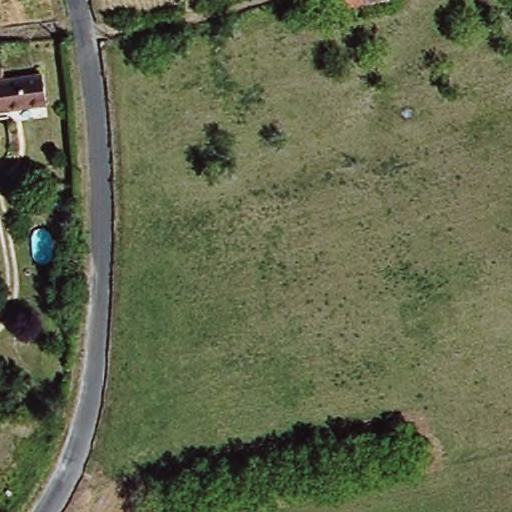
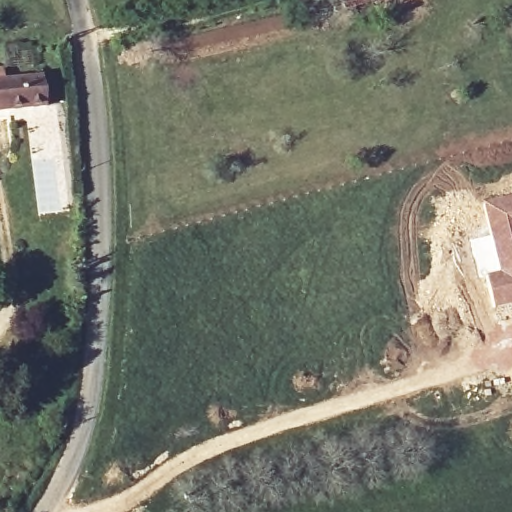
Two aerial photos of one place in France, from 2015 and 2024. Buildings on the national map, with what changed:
unchanged [(343,8),(342,0),(389,0),(343,8)]
unchanged [(0,106),(0,77),(40,70),(44,99),(0,106)]
new [(512,196),(512,305),(494,310),(485,273),(499,270),(482,204),(512,196)]

